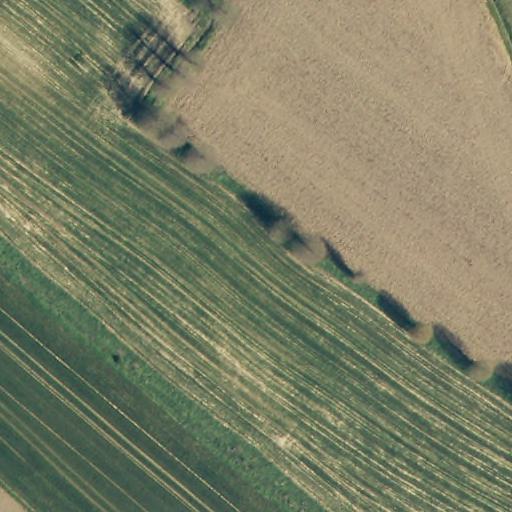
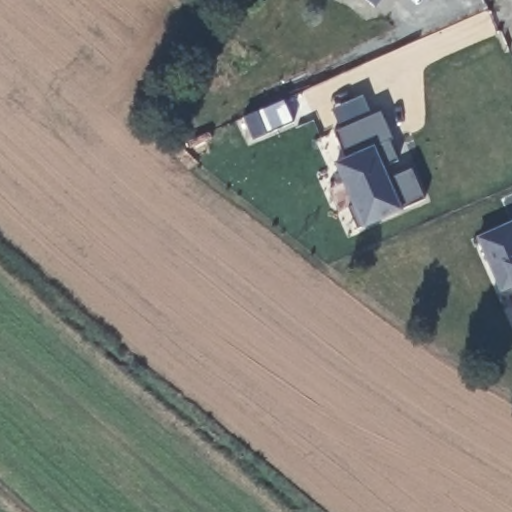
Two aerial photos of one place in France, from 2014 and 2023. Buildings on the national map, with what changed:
new [(375,6),(368,0),(379,0),(375,6)]
new [(424,199),(357,228),(349,207),(356,205),(335,164),(346,159),(334,132),(382,112),(393,139),(389,140),(398,160),(383,167),(388,180),(412,169),(424,199)]
new [(501,292),(477,237),(512,221),(512,286),(501,292)]

